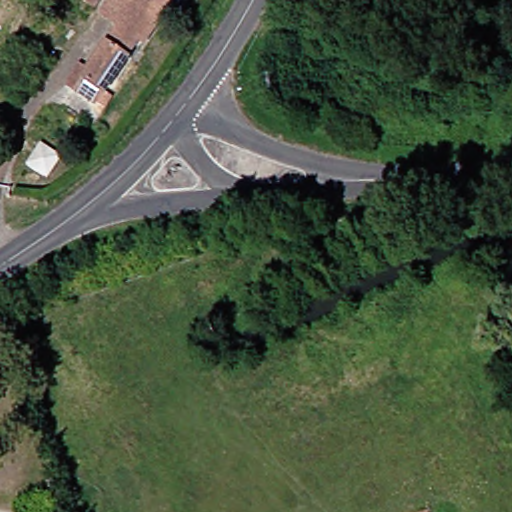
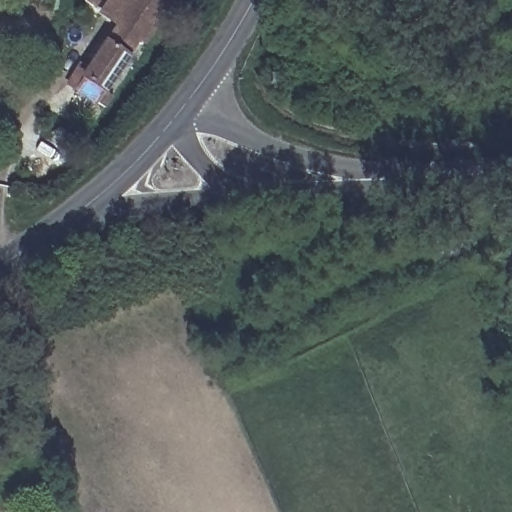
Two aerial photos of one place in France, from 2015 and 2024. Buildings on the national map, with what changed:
unchanged [(101,61),(124,26),(108,15),(118,0),(161,0),(175,11),(151,45),(145,41),(111,92),(109,90),(100,102),(81,91),(90,78),(79,69),(90,52),(101,61)]

